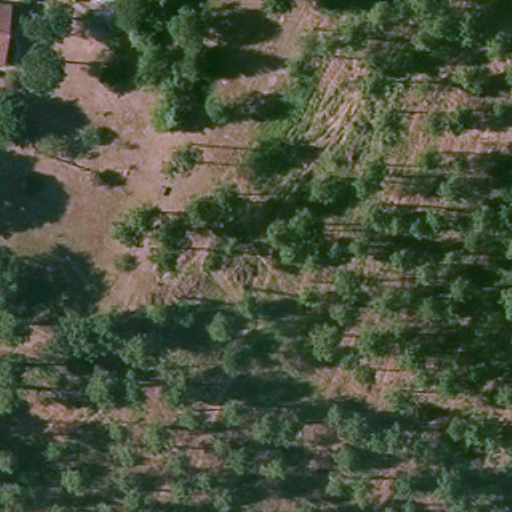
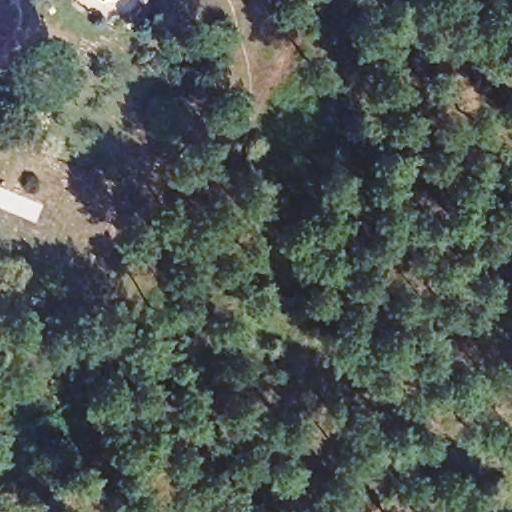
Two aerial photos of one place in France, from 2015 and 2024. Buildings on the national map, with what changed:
unchanged [(0,58),(0,4),(10,4),(9,59),(0,58)]

